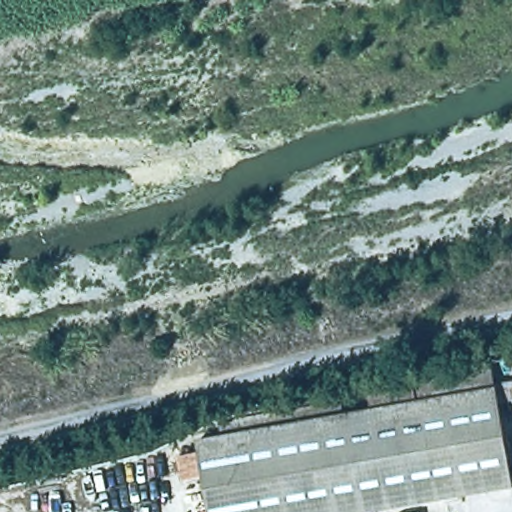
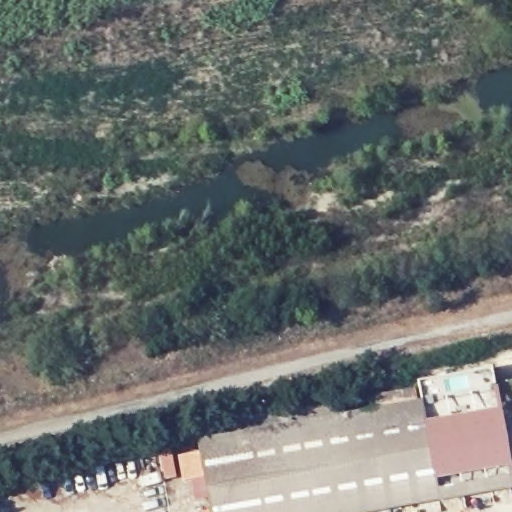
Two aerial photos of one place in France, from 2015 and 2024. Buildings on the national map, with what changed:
unchanged [(507,487),(366,512),(194,512),(193,507),(203,506),(197,477),(177,482),(172,456),(193,451),(191,440),(365,410),(363,396),(408,388),(411,401),(415,400),(412,382),(487,369),(490,387),(507,487)]

